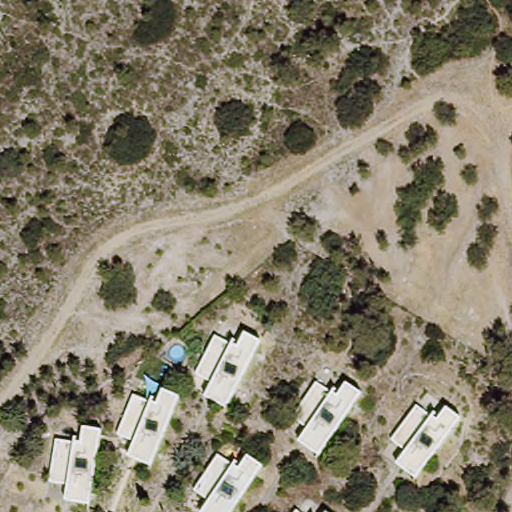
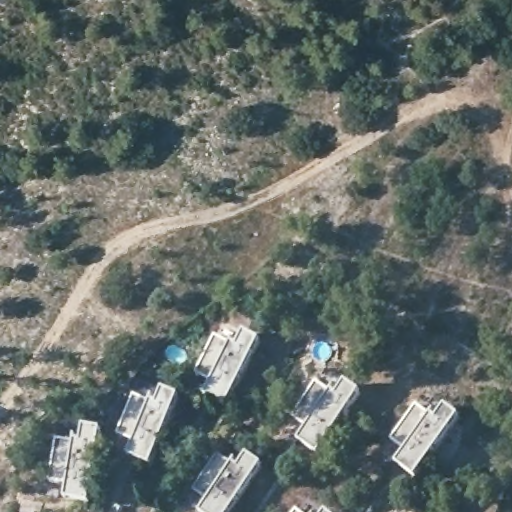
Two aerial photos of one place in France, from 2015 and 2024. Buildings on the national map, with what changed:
unchanged [(216,341),(239,353),(246,339),(261,347),(231,406),(227,403),(225,407),(214,401),(219,391),(196,380),(216,341)]
unchanged [(339,402),(347,389),(361,399),(324,453),(320,451),(318,454),(308,447),(314,437),(293,423),(318,387),(339,402)]
unchanged [(135,395),(158,405),(164,390),(180,397),(154,458),(150,456),(149,460),(137,455),(142,445),(118,435),(135,395)]
unchanged [(418,405),(439,421),(448,409),(461,420),(421,472),(418,469),(415,472),(405,465),(412,455),(392,440),(418,405)]
unchanged [(57,445),(83,448),(85,433),(102,436),(91,501),(87,500),(86,505),(74,502),(76,491),(51,487),(57,445)]
unchanged [(222,455),(243,469),(252,456),(266,465),(235,512),(215,512),(220,505),(198,491),(222,455)]
unchanged [(303,510),(304,512),(301,512),(303,510)]

